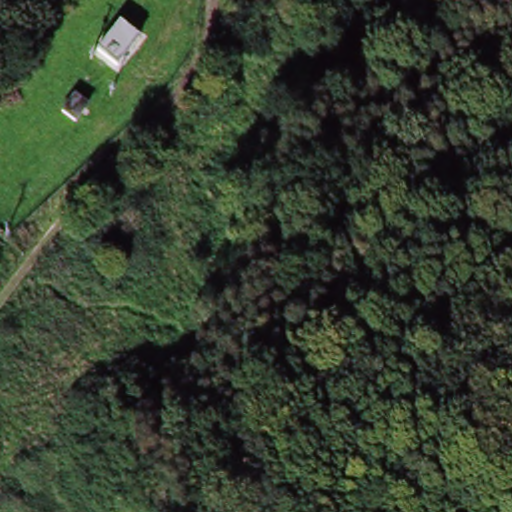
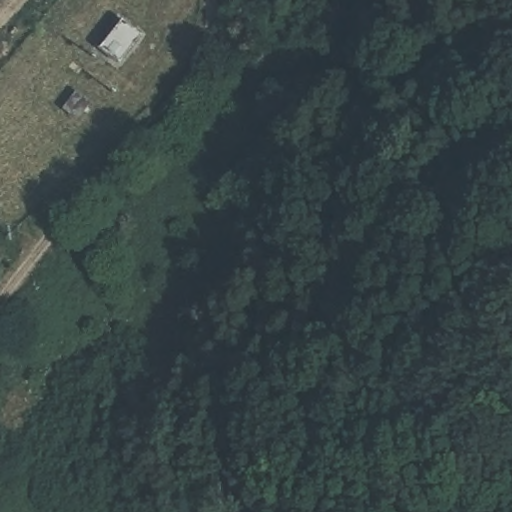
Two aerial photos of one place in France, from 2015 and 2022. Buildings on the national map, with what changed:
unchanged [(100,49),(121,21),(141,36),(120,64),(100,49)]
unchanged [(91,104),(77,119),(65,110),(76,93),(91,104)]

